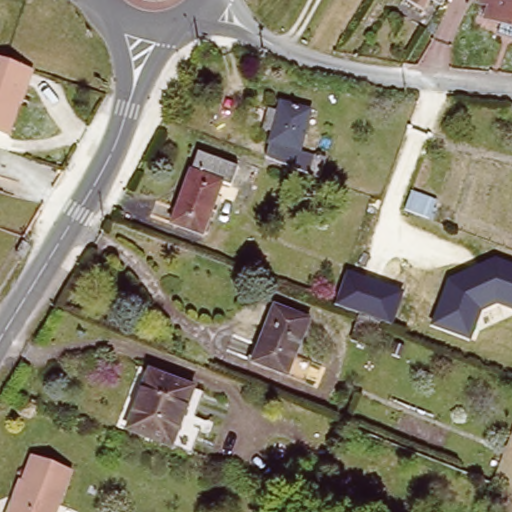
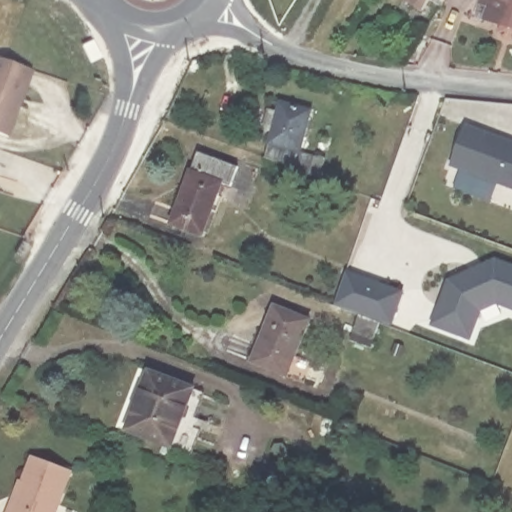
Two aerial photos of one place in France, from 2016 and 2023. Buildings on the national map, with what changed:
unchanged [(428,7),(417,0),(433,0),(428,7)]
unchanged [(478,22),(485,0),(512,0),(512,36),(478,22)]
unchanged [(12,136),(0,132),(0,58),(35,71),(12,136)]
unchanged [(315,121),(303,165),(270,155),(281,112),(315,121)]
new [(496,183),(490,201),(455,188),(461,170),(451,166),(467,125),(512,141),(512,189),(496,183)]
unchanged [(236,170),(230,190),(221,187),(203,240),(172,229),(198,157),(236,170)]
unchanged [(431,326),(447,279),(496,258),(512,264),(512,310),(500,306),(482,313),(473,340),(431,326)]
unchanged [(335,306),(346,272),(403,290),(390,324),(335,306)]
unchanged [(312,316),(290,378),(250,361),(273,302),(312,316)]
demolished [(354,312),(350,326),(330,319),(335,305),(354,312)]
unchanged [(148,373),(195,390),(173,449),(124,431),(148,373)]
unchanged [(22,502),(38,458),(73,471),(58,512),(11,512),(15,500),(22,502)]

